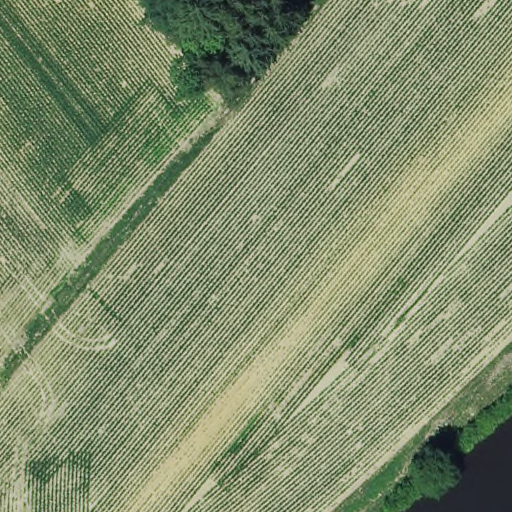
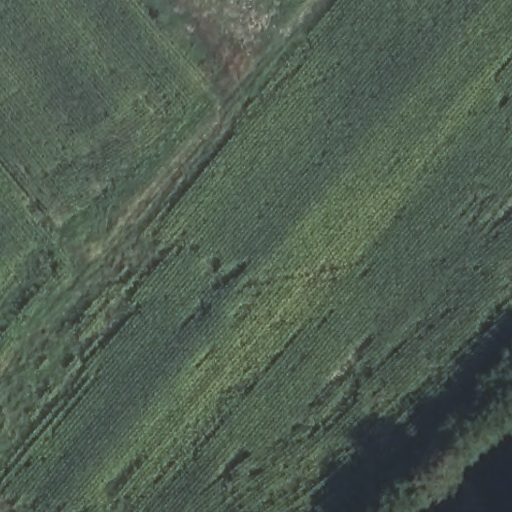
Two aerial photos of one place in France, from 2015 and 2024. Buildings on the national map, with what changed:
[]

